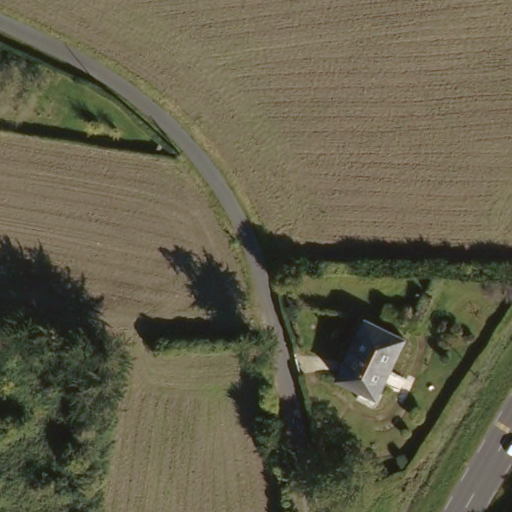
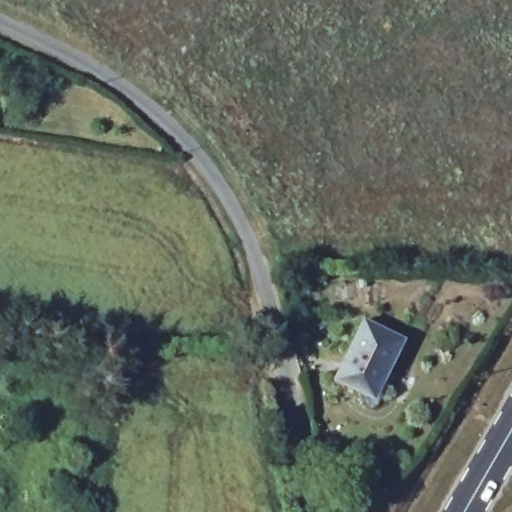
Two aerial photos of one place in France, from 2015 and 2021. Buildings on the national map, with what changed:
unchanged [(399,374),(388,370),(377,395),(364,390),(347,383),(372,322),(413,340),(399,374)]

